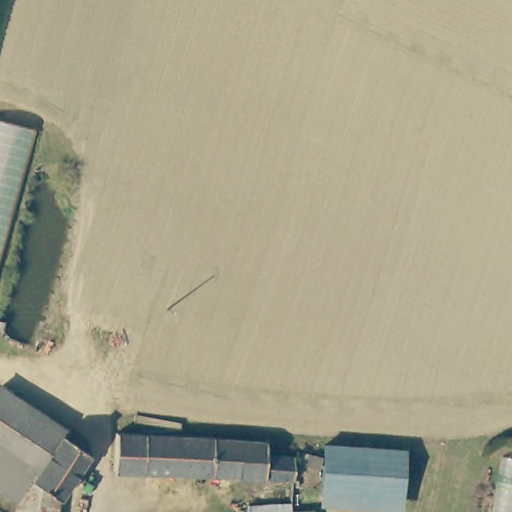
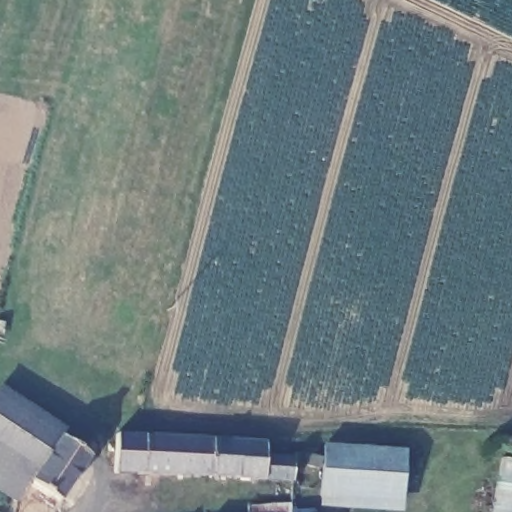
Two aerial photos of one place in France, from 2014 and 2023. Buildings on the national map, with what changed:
demolished [(39,132),(0,262),(0,124),(39,132)]
unchanged [(36,420),(59,437),(37,473),(0,449),(0,400),(36,420)]
unchanged [(30,485),(37,473),(59,437),(61,435),(90,453),(60,503),(57,501),(30,485)]
unchanged [(114,471),(117,435),(267,445),(267,458),(293,460),(291,485),(114,471)]
unchanged [(325,443),(375,447),(405,449),(403,481),(402,508),(322,502),(325,456),(325,443)]
unchanged [(0,495),(0,449),(37,473),(30,485),(24,492),(14,504),(0,495)]
unchanged [(512,458),(512,512),(493,512),(502,456),(512,458)]
unchanged [(15,505),(14,504),(24,492),(30,485),(57,501),(56,512),(15,512),(15,505)]
unchanged [(289,506),(313,503),(314,512),(289,512),(289,506)]

